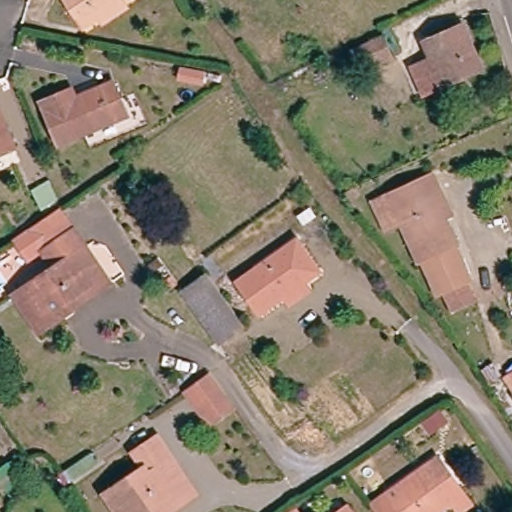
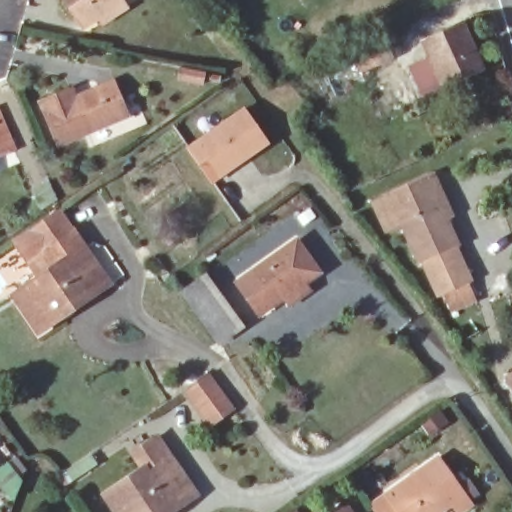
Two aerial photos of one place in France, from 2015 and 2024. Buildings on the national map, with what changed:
unchanged [(90,28),(71,0),(124,0),(126,2),(90,28)]
unchanged [(486,67),(428,96),(415,69),(433,61),(425,44),(465,25),(486,67)]
unchanged [(382,37),(391,57),(359,71),(350,51),(382,37)]
unchanged [(210,84),(184,79),(187,65),(226,72),(224,81),(211,79),(210,84)]
unchanged [(126,120),(56,149),(40,107),(71,94),(75,102),(97,93),(104,110),(119,104),(126,120)]
new [(271,145),(214,186),(186,148),(243,106),(271,145)]
unchanged [(0,153),(0,115),(14,147),(0,153)]
unchanged [(451,303),(443,287),(437,290),(421,256),(417,257),(386,191),(432,169),(438,182),(431,185),(457,239),(453,241),(469,275),(466,276),(474,292),(451,303)]
unchanged [(57,196),(61,206),(45,213),(39,197),(55,191),(57,196)]
unchanged [(64,269),(52,252),(38,263),(32,254),(24,242),(68,211),(95,249),(86,255),(108,286),(74,309),(78,315),(50,334),(24,297),(64,269)]
unchanged [(297,306),(291,298),(266,316),(244,284),(304,242),(326,273),(311,284),(317,292),(297,306)]
unchanged [(191,292),(215,276),(250,327),(227,343),(191,292)]
unchanged [(506,376),(512,372),(512,386),(506,376)]
unchanged [(217,378),(242,412),(218,430),(192,395),(217,378)]
unchanged [(450,426),(430,438),(420,423),(439,410),(450,426)]
unchanged [(169,460),(161,465),(181,493),(154,512),(115,512),(103,494),(141,468),(131,452),(154,437),(169,460)]
unchanged [(90,452),(98,447),(104,455),(74,476),(68,467),(90,452)]
unchanged [(456,512),(455,512),(451,506),(442,512),(397,512),(385,495),(436,459),(454,485),(469,503),(456,512)]
unchanged [(397,512),(372,512),(368,506),(385,495),(397,512)]
unchanged [(352,512),(332,512),(345,502),(352,512)]
unchanged [(291,506),(296,512),(282,512),(291,506)]

